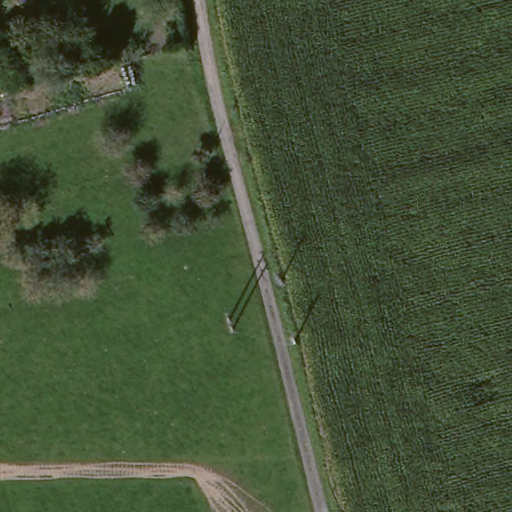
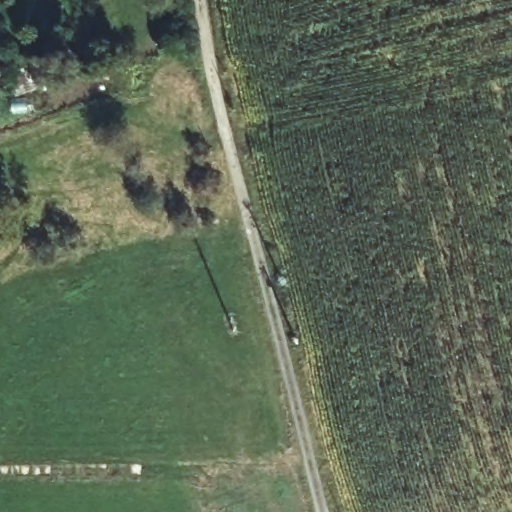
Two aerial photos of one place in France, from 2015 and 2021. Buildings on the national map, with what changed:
[]

